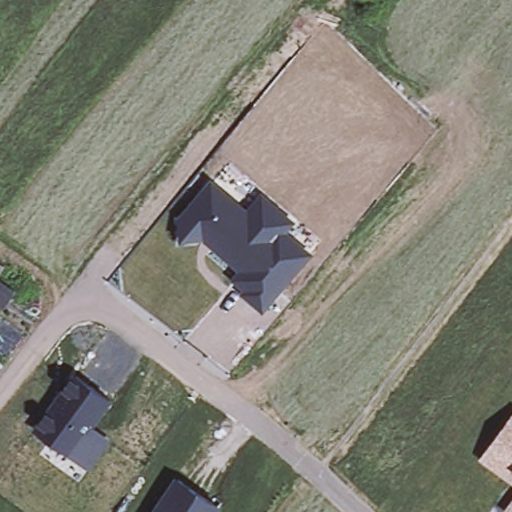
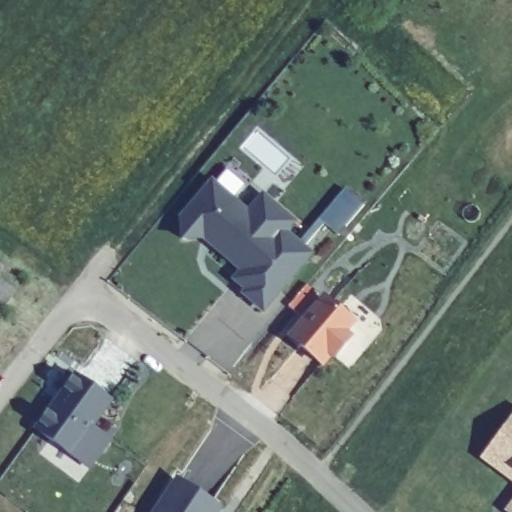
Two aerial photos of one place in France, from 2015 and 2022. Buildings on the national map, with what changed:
unchanged [(248,208),(261,192),(297,221),(289,233),(314,253),(264,313),(241,294),(244,291),(231,278),(238,270),(204,242),(181,242),(178,217),(212,179),(248,208)]
new [(318,218),(345,187),(364,203),(337,234),(318,218)]
unchanged [(0,275),(0,265),(5,268),(0,275)]
unchanged [(0,280),(16,292),(4,310),(0,307),(0,280)]
new [(286,336),(323,293),(356,321),(348,332),(354,337),(336,360),(331,356),(322,367),(286,336)]
unchanged [(36,428),(74,371),(111,397),(94,423),(112,435),(91,467),(36,428)]
unchanged [(482,458),(512,417),(512,480),(482,458)]
unchanged [(216,512),(156,512),(164,500),(178,480),(196,492),(209,501),(218,507),(216,512)]
unchanged [(506,510),(512,502),(512,512),(509,512),(506,510)]

